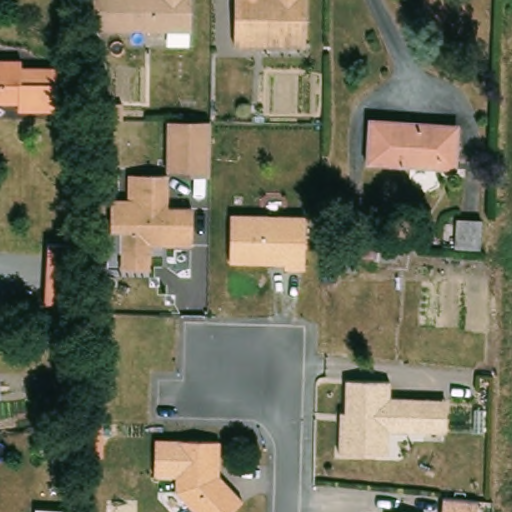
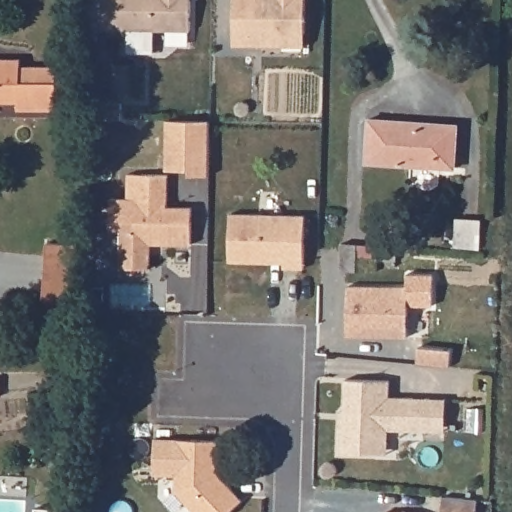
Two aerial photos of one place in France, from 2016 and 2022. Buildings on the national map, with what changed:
unchanged [(95,30),(93,30),(91,0),(192,0),(192,30),(95,30)]
unchanged [(234,50),(234,0),(305,0),(305,39),(305,50),(263,50),(234,50)]
unchanged [(20,100),(0,100),(0,59),(21,59),(21,68),(56,66),(56,109),(20,109),(20,100)]
unchanged [(126,98),(126,114),(100,114),(99,98),(126,98)]
unchanged [(459,129),(456,167),(368,161),(371,117),(413,119),(413,125),(459,129)]
unchanged [(164,119),(210,120),(209,177),(189,176),(190,171),(165,170),(164,119)]
unchanged [(119,267),(120,233),(110,233),(110,199),(126,199),(126,174),(166,174),(166,204),(191,204),(190,246),(150,245),(149,269),(119,267)]
unchanged [(231,265),(233,218),(308,220),(306,273),(286,272),(286,267),(259,266),(231,265)]
unchanged [(460,256),(460,228),(488,229),(487,257),(460,256)]
unchanged [(46,307),(51,248),(81,249),(76,309),(46,307)]
new [(348,287),(408,288),(407,338),(347,337),(348,287)]
new [(419,347),(451,350),(449,367),(417,364),(419,347)]
unchanged [(0,375),(2,375),(2,393),(0,393),(0,375)]
unchanged [(343,415),(344,383),(388,384),(387,401),(429,401),(444,401),(443,434),(428,433),(387,433),(377,442),(376,457),(338,456),(338,429),(338,414),(343,415)]
unchanged [(60,406),(61,399),(74,400),(74,408),(60,406)]
unchanged [(218,475),(242,500),(229,512),(192,512),(173,492),(173,477),(153,476),(154,438),(219,441),(218,475)]
unchanged [(479,505),(478,512),(443,512),(445,500),(479,505)]

